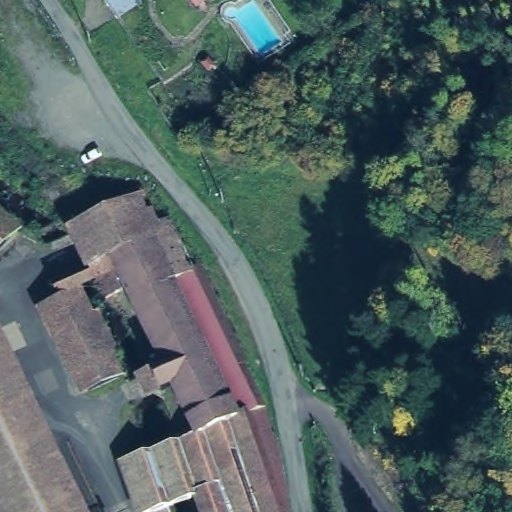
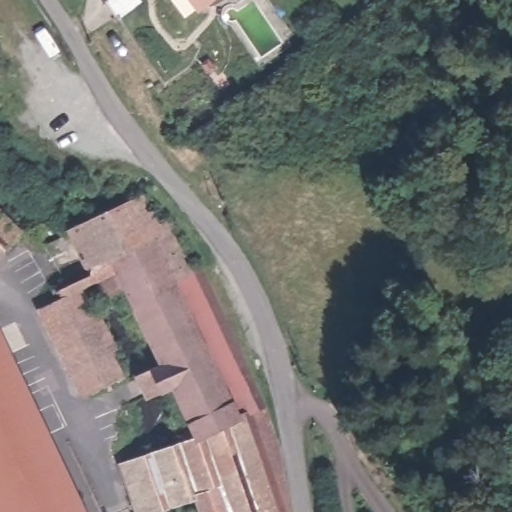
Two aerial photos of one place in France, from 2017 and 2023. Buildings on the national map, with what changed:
unchanged [(137,0),(117,15),(107,2),(109,0),(137,0)]
unchanged [(193,0),(217,0),(201,12),(193,0)]
unchanged [(121,144),(100,155),(92,142),(112,129),(121,144)]
unchanged [(173,445),(171,440),(188,432),(116,285),(96,296),(65,226),(72,222),(62,201),(117,173),(123,183),(138,174),(152,189),(138,197),(140,203),(145,202),(158,226),(165,223),(189,268),(201,263),(246,361),(242,363),(257,399),(260,406),(267,429),(273,448),(284,512),(195,512),(190,498),(168,506),(160,508),(162,512),(132,512),(117,464),(148,452),(173,445)]
unchanged [(8,237),(0,245),(0,229),(8,237)]
unchanged [(100,354),(110,377),(79,391),(40,309),(75,292),(80,290),(110,349),(106,350),(100,354)]
unchanged [(84,512),(0,512),(0,341),(84,512)]

